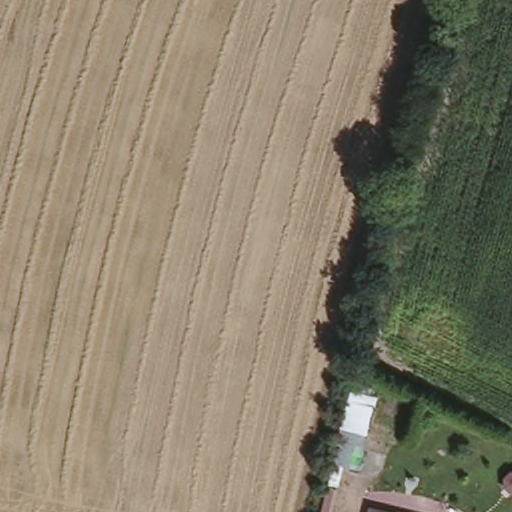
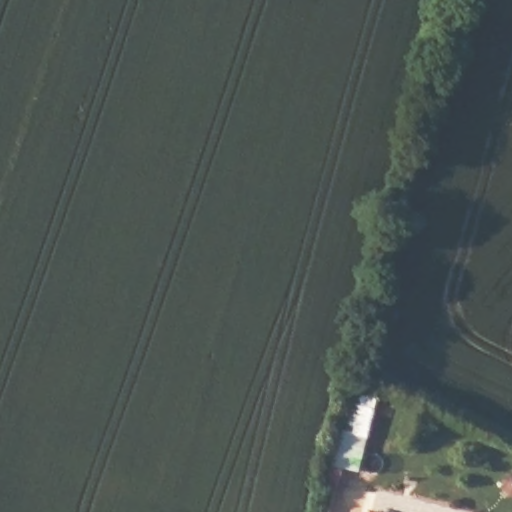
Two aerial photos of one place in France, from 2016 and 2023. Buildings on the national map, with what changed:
unchanged [(391,512),(367,512),(368,506),(391,512)]

